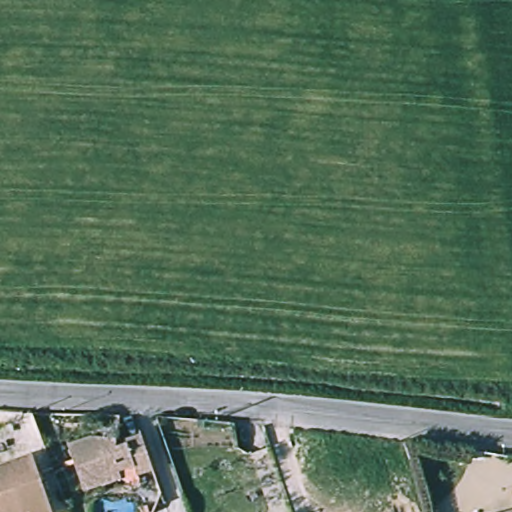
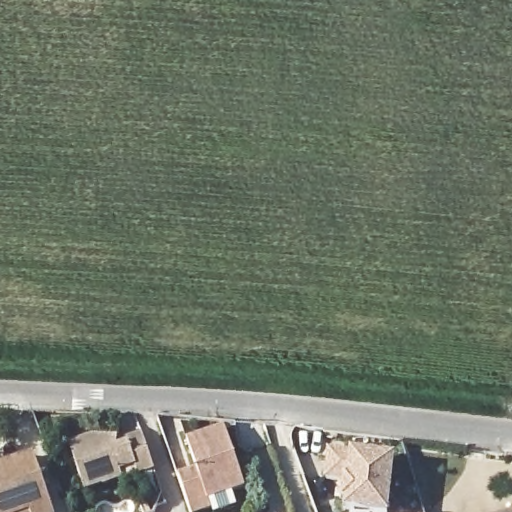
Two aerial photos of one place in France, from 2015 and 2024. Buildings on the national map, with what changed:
new [(207,512),(190,512),(177,475),(196,468),(186,439),(224,428),(246,488),(207,501),(211,510),(207,512)]
unchanged [(158,470),(143,476),(138,466),(123,471),(126,477),(88,490),(71,443),(91,436),(120,437),(119,442),(145,433),(158,470)]
unchanged [(40,512),(0,512),(0,465),(22,458),(40,512)]
new [(328,458),(392,467),(385,512),(344,512),(345,506),(336,505),(340,487),(324,485),(328,458)]

